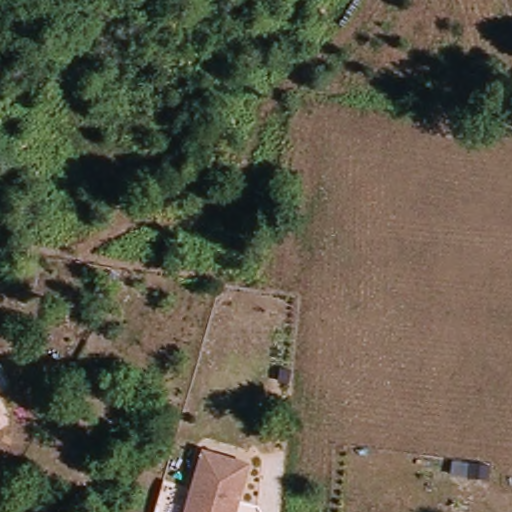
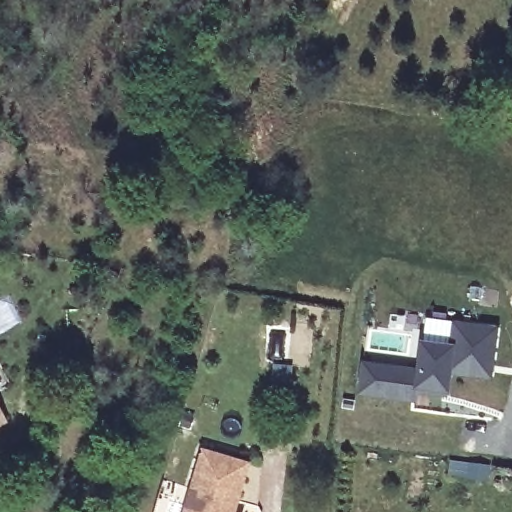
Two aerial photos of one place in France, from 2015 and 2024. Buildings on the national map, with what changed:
new [(418,337),(423,315),(451,318),(499,324),(491,379),(451,373),(447,395),(428,393),(418,392),(412,391),(414,365),(418,337)]
new [(359,359),(414,365),(412,391),(418,392),(416,402),(355,392),(359,359)]
unchanged [(0,428),(0,392),(7,405),(15,418),(0,428)]
unchanged [(185,512),(203,444),(248,456),(234,507),(243,510),(242,512),(185,512)]
new [(448,458),(491,463),(489,481),(446,475),(448,458)]

